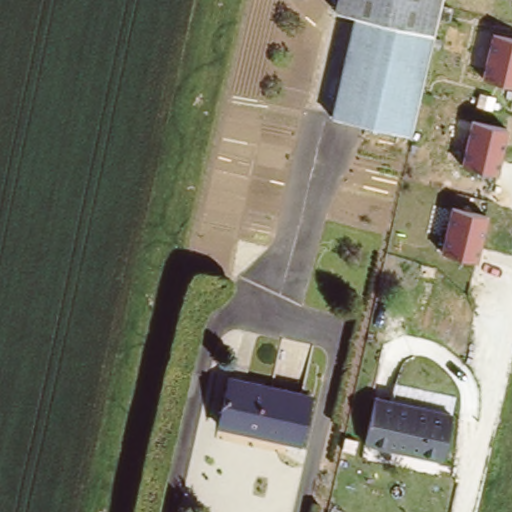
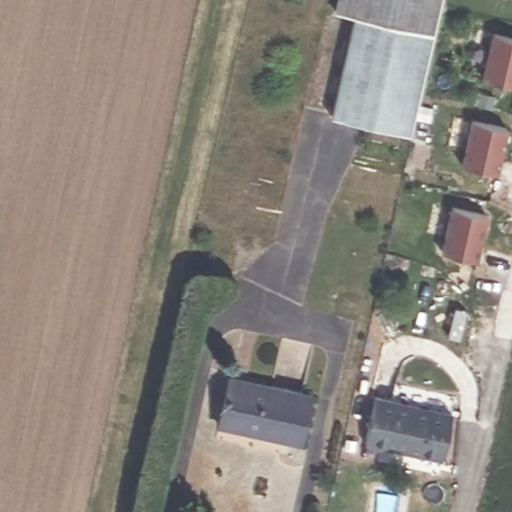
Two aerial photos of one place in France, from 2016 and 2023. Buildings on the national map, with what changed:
unchanged [(448,0),(440,38),(356,18),(337,14),(340,0),(448,0)]
unchanged [(417,136),(334,116),(356,18),(440,38),(417,136)]
unchanged [(512,35),(512,85),(483,79),(493,30),(512,35)]
unchanged [(508,126),(498,173),(463,166),(472,118),(508,126)]
unchanged [(486,214),(476,259),(440,250),(450,206),(486,214)]
unchanged [(315,399),(304,442),(222,423),(232,379),(315,399)]
unchanged [(455,418),(445,463),(369,447),(378,401),(455,418)]

